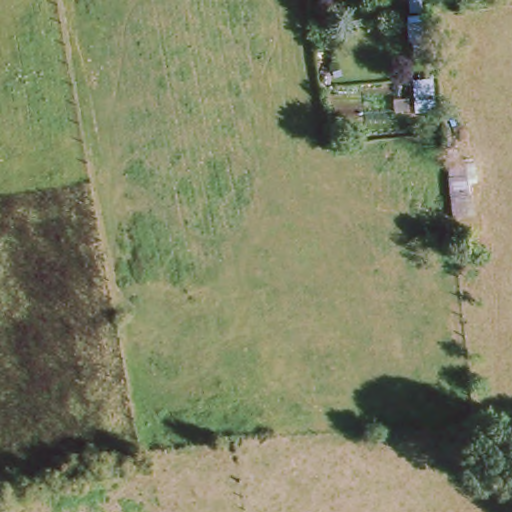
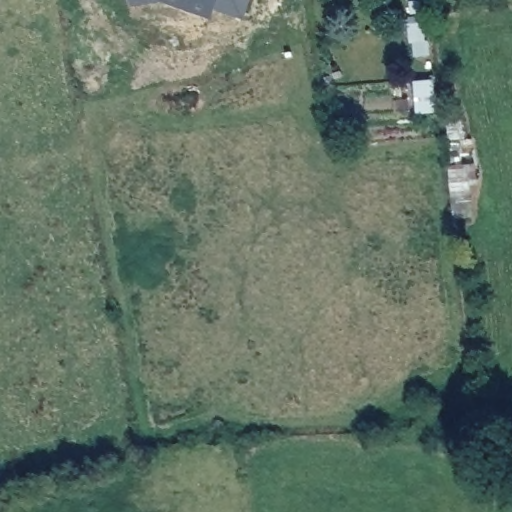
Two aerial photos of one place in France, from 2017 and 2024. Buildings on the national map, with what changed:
new [(215,7),(211,18),(161,0),(132,6),(131,0),(250,0),(243,19),(215,7)]

